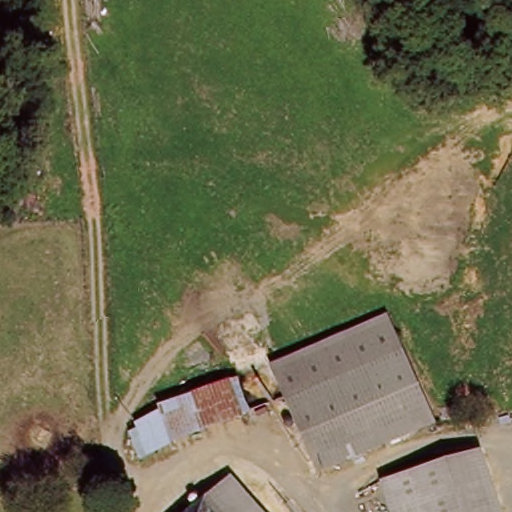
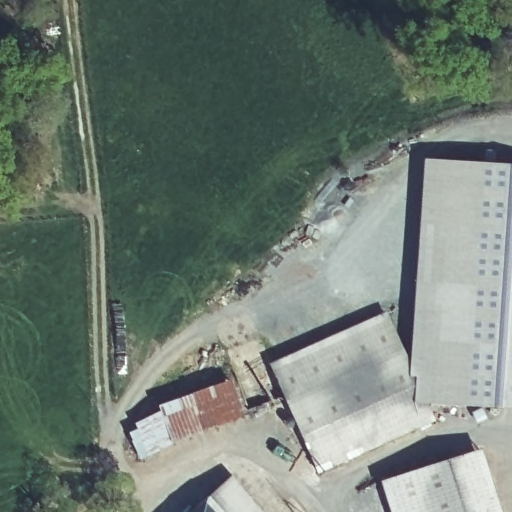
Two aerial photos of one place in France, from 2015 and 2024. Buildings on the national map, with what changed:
new [(512,164),(512,408),(434,405),(429,394),(412,357),(424,159),(512,164)]
unchanged [(391,312),(407,348),(380,360),(294,399),(277,363),(342,334),(391,312)]
unchanged [(407,348),(429,394),(439,417),(356,454),(325,468),(312,440),(294,399),(380,360),(407,348)]
unchanged [(212,429),(196,391),(232,375),(247,413),(212,429)]
unchanged [(180,443),(162,405),(196,391),(212,429),(180,443)]
unchanged [(180,443),(140,460),(129,436),(139,432),(135,423),(165,412),(180,443)]
unchanged [(487,450),(508,512),(399,512),(389,480),(487,450)]
unchanged [(230,478),(261,512),(218,512),(207,499),(230,478)]
unchanged [(218,512),(192,512),(207,499),(218,512)]

